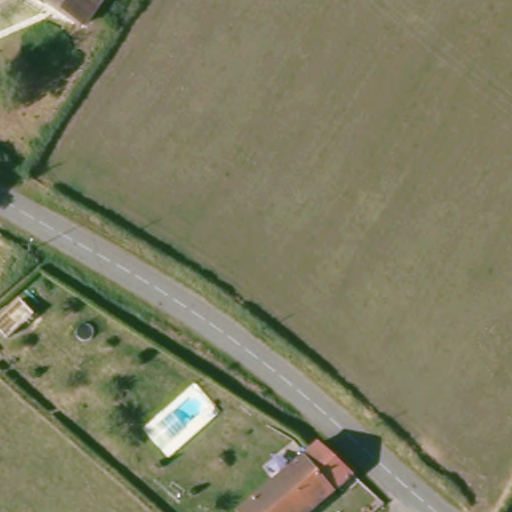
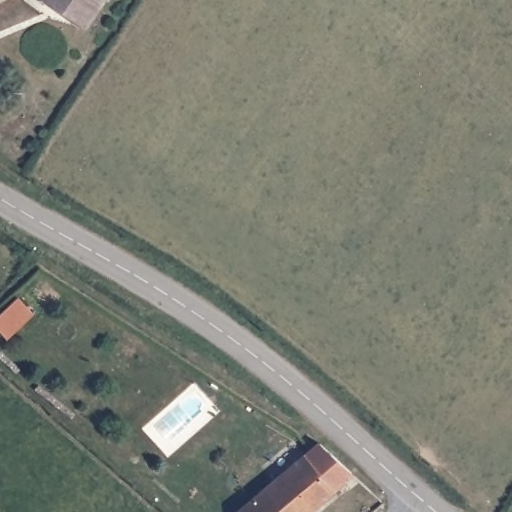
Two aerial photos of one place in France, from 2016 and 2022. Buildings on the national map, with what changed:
unchanged [(41,0),(97,0),(80,26),(41,0)]
unchanged [(300,512),(231,512),(231,511),(311,444),(345,475),(300,512)]

